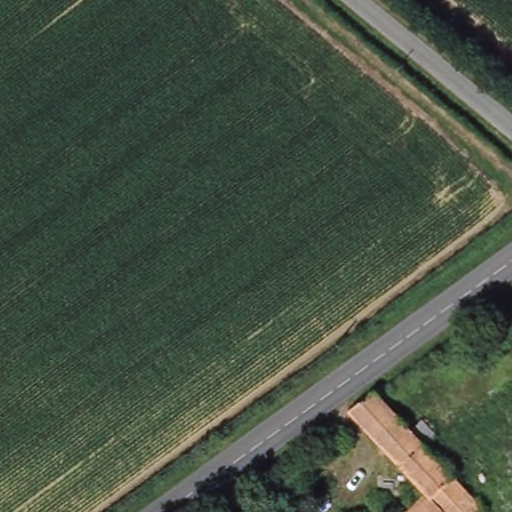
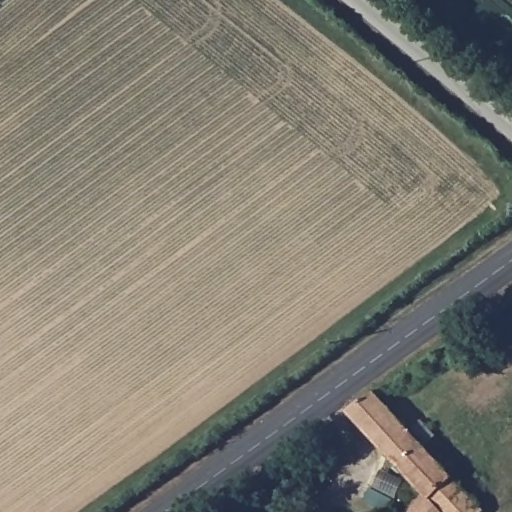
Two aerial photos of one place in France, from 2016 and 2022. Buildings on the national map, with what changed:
unchanged [(435,441),(425,450),(481,512),(410,512),(425,498),(347,414),(358,407),(374,396),(410,434),(420,426),(435,441)]

